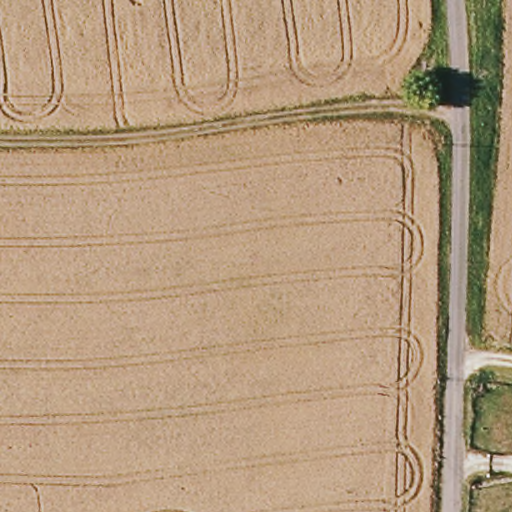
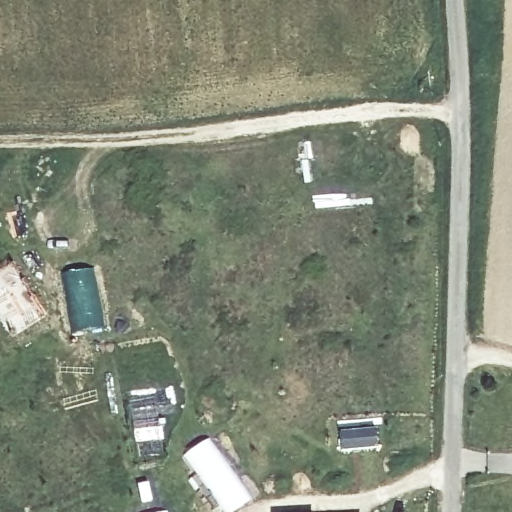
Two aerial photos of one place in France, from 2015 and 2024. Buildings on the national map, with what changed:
new [(376,425),(377,446),(340,450),(338,427),(376,425)]
new [(253,497),(232,512),(222,512),(181,456),(209,436),(253,497)]

